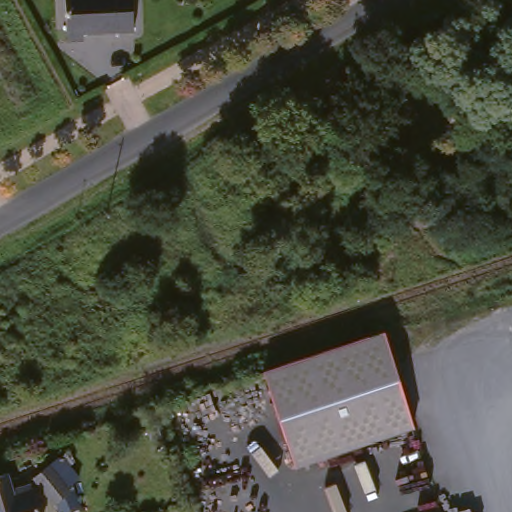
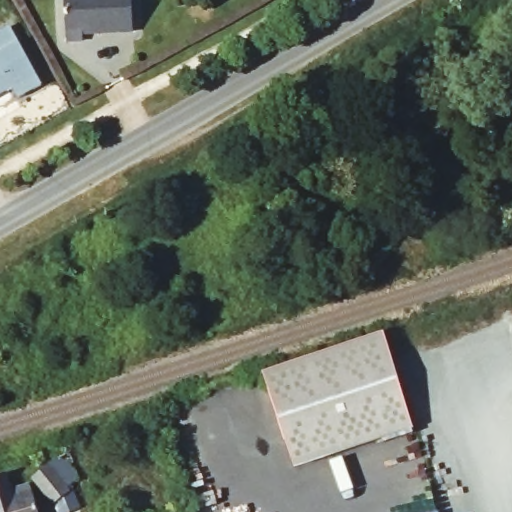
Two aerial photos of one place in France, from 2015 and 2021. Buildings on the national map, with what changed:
unchanged [(82,33),(82,40),(67,40),(65,0),(132,0),(133,31),(82,33)]
new [(19,42),(41,83),(17,97),(12,87),(0,94),(0,30),(10,25),(19,42)]
unchanged [(390,375),(410,437),(290,473),(260,377),(380,341),(390,375)]
unchanged [(78,512),(52,512),(49,503),(29,477),(57,457),(72,478),(66,482),(78,512)]
unchanged [(0,474),(2,473),(7,488),(8,495),(11,494),(9,488),(24,483),(32,512),(0,512),(0,474)]

